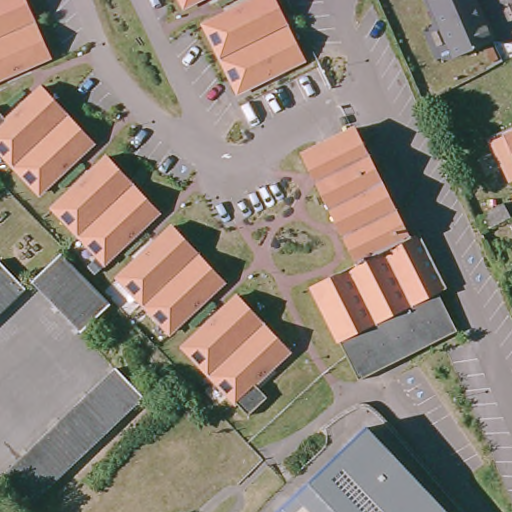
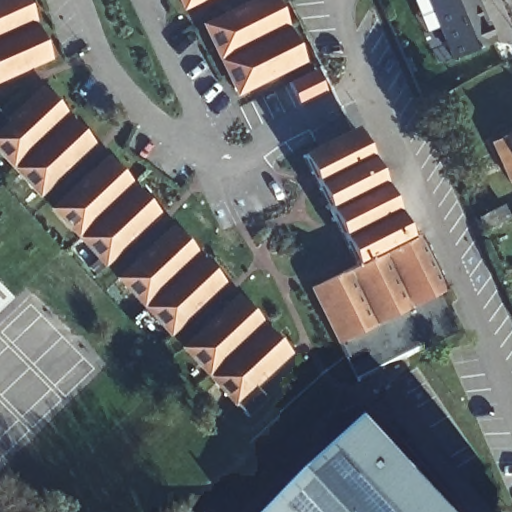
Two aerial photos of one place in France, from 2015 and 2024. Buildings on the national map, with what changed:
unchanged [(25,0),(50,57),(0,80),(0,0),(25,0)]
unchanged [(180,0),(199,0),(184,7),(180,0)]
unchanged [(237,92),(204,26),(256,0),(275,0),(305,59),(237,92)]
unchanged [(476,0),(485,19),(489,20),(495,35),(493,40),(495,40),(455,58),(430,0),(476,0)]
unchanged [(7,122),(42,88),(94,143),(40,195),(0,153),(0,114),(7,122)]
unchanged [(355,128),(410,236),(418,232),(447,287),(437,291),(457,330),(359,380),(312,286),(357,263),(302,155),(355,128)]
unchanged [(512,131),(512,181),(510,181),(492,140),(512,131)]
unchanged [(108,157),(160,212),(105,263),(53,209),(108,157)]
unchanged [(477,215),(504,204),(510,219),(484,230),(477,215)]
unchanged [(225,281),(170,332),(119,278),(173,226),(225,281)]
demolished [(55,250),(104,301),(75,328),(27,277),(55,250)]
unchanged [(21,284),(0,304),(0,263),(21,284)]
unchanged [(238,295),(290,350),(255,383),(268,397),(249,415),(185,347),(238,295)]
demolished [(111,362),(139,391),(17,507),(0,489),(0,469),(111,362)]
unchanged [(295,491),(369,422),(453,512),(275,512),(295,491)]

